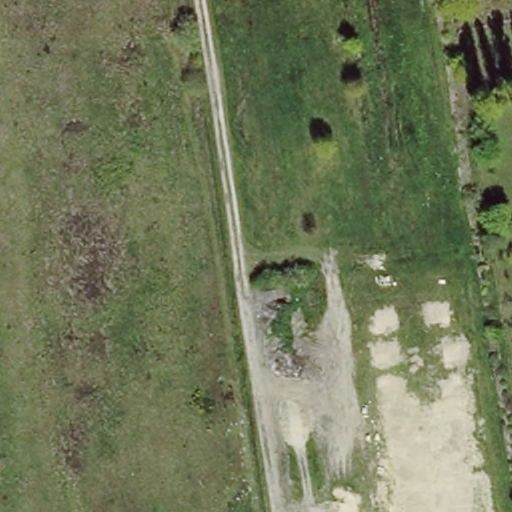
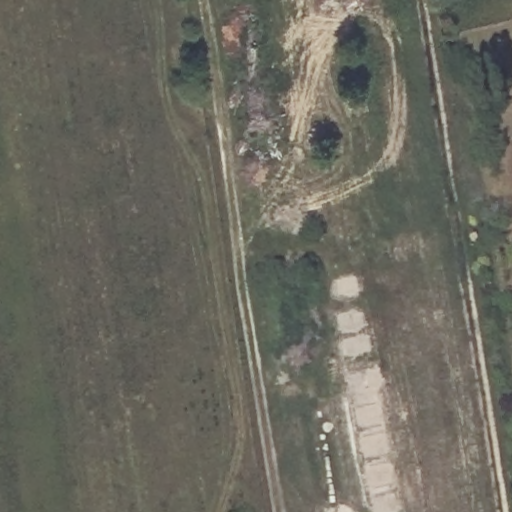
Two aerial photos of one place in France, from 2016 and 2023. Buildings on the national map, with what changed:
[]

